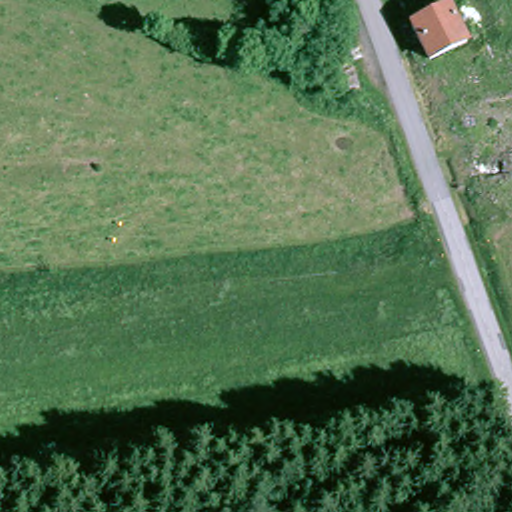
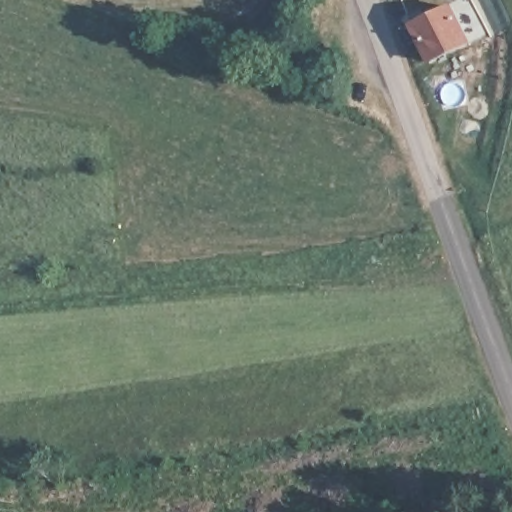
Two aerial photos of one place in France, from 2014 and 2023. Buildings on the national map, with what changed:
unchanged [(444,10),(464,45),(427,65),(409,31),(444,10)]

